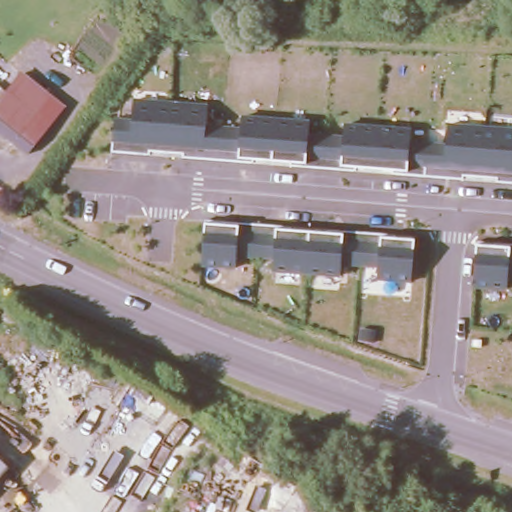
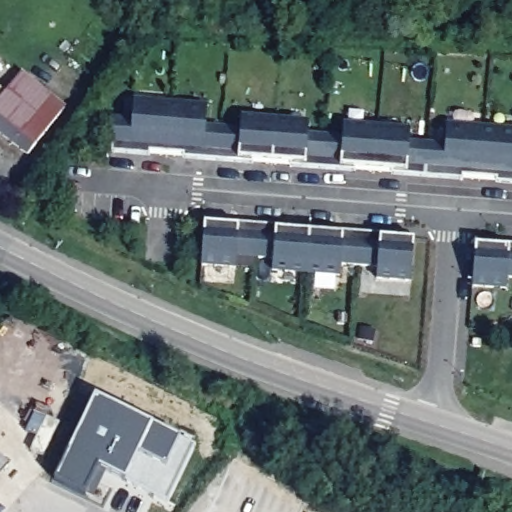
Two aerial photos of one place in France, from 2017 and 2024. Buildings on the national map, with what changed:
unchanged [(21,71),(64,106),(28,154),(0,133),(0,87),(5,91),(21,71)]
unchanged [(116,119),(133,119),(135,99),(208,105),(206,126),(241,130),(242,116),(311,122),(309,137),(343,138),(344,125),(411,130),(409,144),(446,144),(448,123),(512,129),(512,183),(460,181),(408,172),(341,167),(322,169),(306,164),(239,159),(113,154),(116,119)]
unchanged [(203,265),(203,245),(204,224),(226,225),(226,222),(291,226),(291,232),(331,235),(331,230),(396,235),(394,240),(413,242),(412,263),(411,282),(377,279),(379,259),(341,258),(339,276),(273,271),(275,252),(236,249),(235,267),(203,265)]
unchanged [(475,245),(496,246),(496,241),(512,243),(512,271),(508,270),(506,290),(474,287),(475,245)]
new [(83,492),(56,479),(96,397),(179,439),(173,452),(184,458),(165,498),(97,465),(83,492)]
unchanged [(0,480),(0,453),(13,464),(0,480)]

